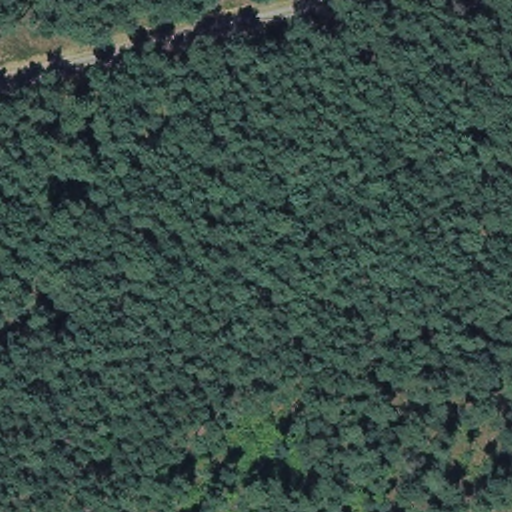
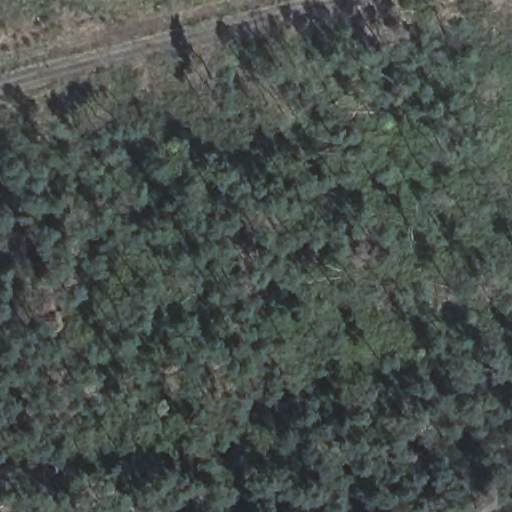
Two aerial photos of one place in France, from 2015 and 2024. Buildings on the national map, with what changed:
[]

